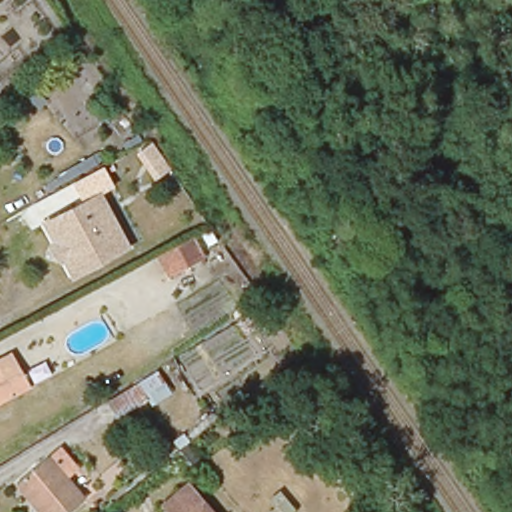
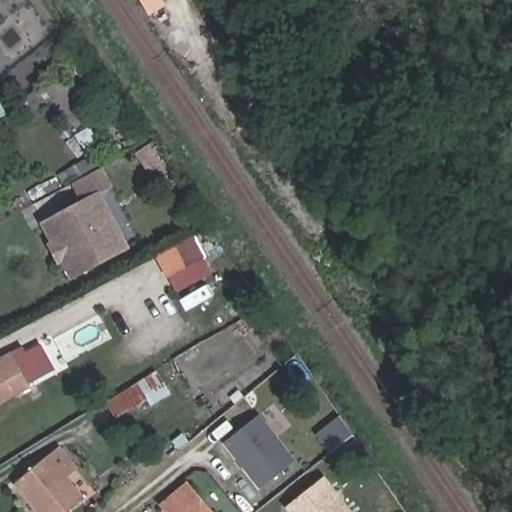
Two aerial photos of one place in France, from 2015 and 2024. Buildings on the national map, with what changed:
unchanged [(54,249),(57,247),(46,227),(97,197),(110,219),(128,249),(124,252),(76,280),(65,262),(61,264),(54,249)]
unchanged [(187,232),(200,254),(165,274),(152,252),(187,232)]
unchanged [(17,356),(26,375),(33,389),(0,407),(0,365),(2,364),(17,356)]
unchanged [(162,372),(176,395),(122,426),(109,403),(162,372)]
new [(259,489),(224,444),(261,415),(296,460),(259,489)]
unchanged [(63,480),(82,502),(69,512),(35,512),(13,485),(42,461),(49,459),(54,456),(58,451),(73,470),(63,480)]
new [(353,512),(290,512),(286,506),(326,475),(353,512)]
unchanged [(167,504),(191,485),(213,512),(173,512),(167,504)]

